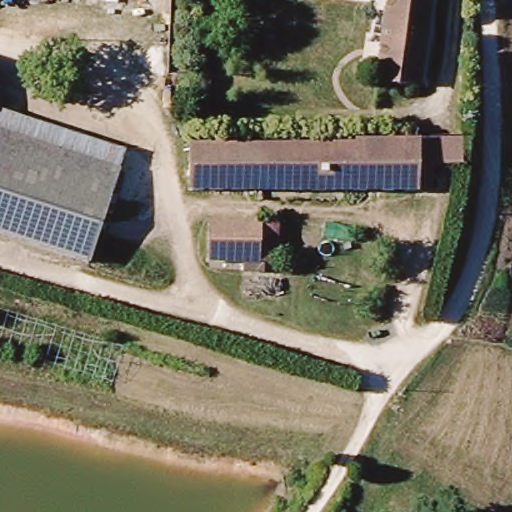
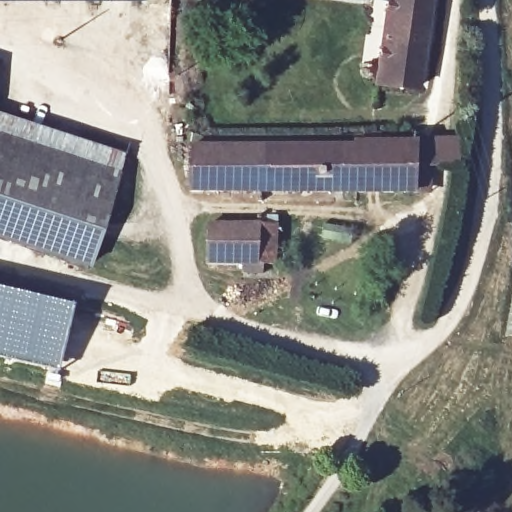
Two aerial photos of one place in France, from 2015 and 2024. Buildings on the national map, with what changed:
unchanged [(424,92),(383,88),(382,81),(386,39),(372,38),(373,21),(387,22),(389,0),(431,0),(424,92)]
unchanged [(109,197),(0,161),(0,116),(122,159),(109,197)]
unchanged [(189,192),(189,148),(325,152),(325,157),(349,157),(349,149),(362,149),(362,140),(382,140),(382,149),(422,149),(422,150),(416,197),(189,192)]
unchanged [(84,272),(0,243),(0,161),(109,197),(84,272)]
unchanged [(215,227),(277,229),(276,267),(212,265),(215,227)]
new [(60,373),(0,358),(0,287),(76,306),(60,373)]

